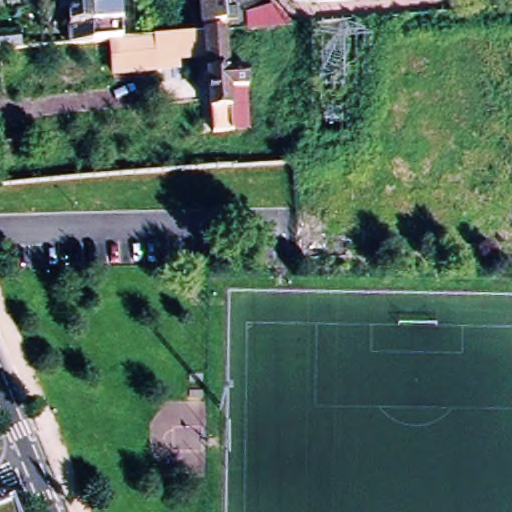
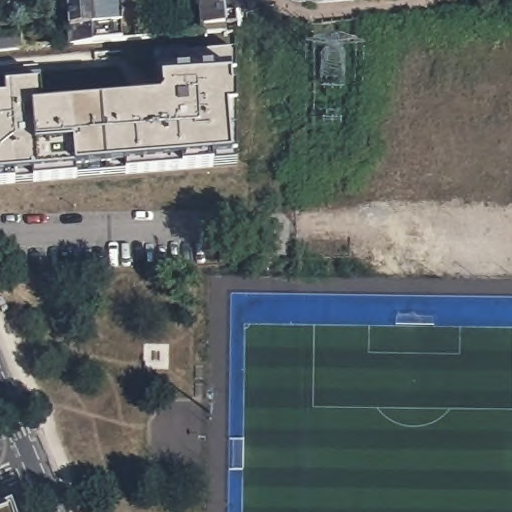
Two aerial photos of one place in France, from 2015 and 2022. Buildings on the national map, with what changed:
unchanged [(69,45),(66,0),(90,0),(92,43),(69,45)]
unchanged [(135,25),(145,25),(146,38),(136,39),(123,40),(110,41),(92,43),(90,0),(120,0),(121,8),(132,7),(133,25),(135,25)]
unchanged [(199,0),(264,0),(287,24),(286,25),(225,30),(202,32),(201,26),(199,0)]
unchanged [(294,1),(294,0),(369,0),(319,4),(294,1)]
demolished [(228,73),(245,71),(245,81),(247,90),(230,91),(232,132),(213,134),(208,56),(178,59),(179,73),(115,79),(110,41),(123,40),(146,38),(202,32),(225,30),(228,73)]
unchanged [(21,32),(22,49),(0,51),(0,34),(21,32)]
new [(187,46),(189,55),(160,57),(159,49),(187,46)]
new [(40,80),(42,111),(164,101),(160,57),(235,51),(236,160),(236,168),(212,170),(86,179),(77,180),(34,184),(15,186),(0,187),(0,83),(40,80)]
new [(7,76),(9,83),(0,83),(0,76),(7,76)]
new [(140,96),(163,94),(164,101),(140,103),(140,96)]
new [(70,102),(71,109),(54,111),(53,104),(70,102)]
unchanged [(11,509),(12,512),(4,512),(11,509)]

